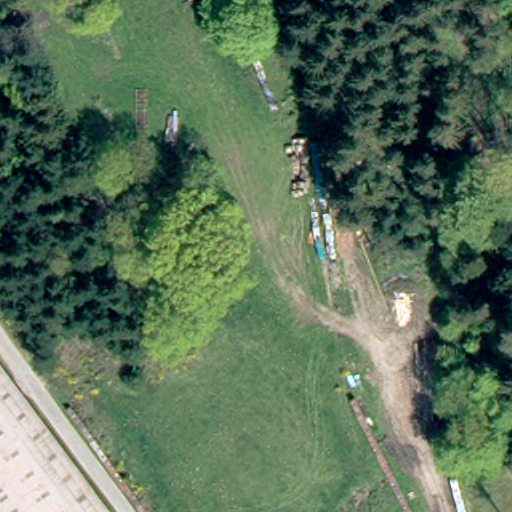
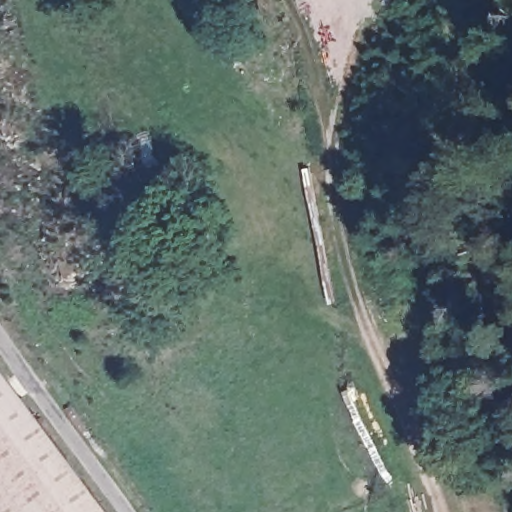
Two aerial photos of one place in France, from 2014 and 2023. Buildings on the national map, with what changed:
unchanged [(106,512),(0,512),(0,372),(109,510),(106,512)]

